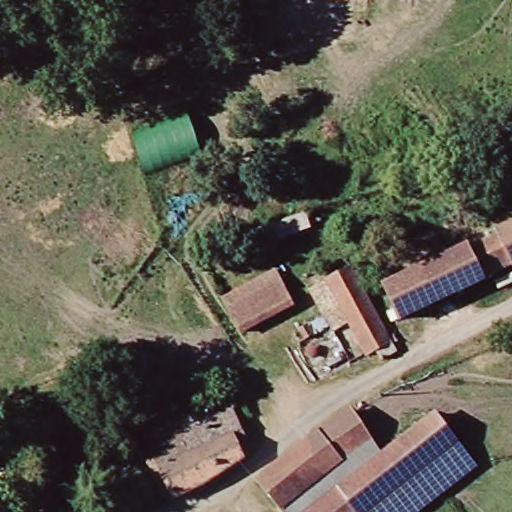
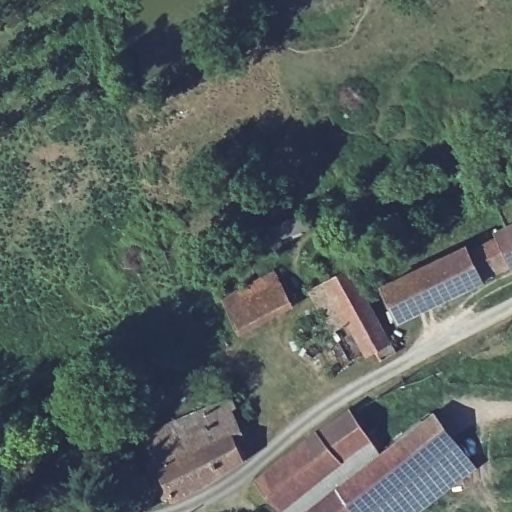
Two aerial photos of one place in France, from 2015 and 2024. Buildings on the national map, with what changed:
demolished [(189,115),(202,151),(143,173),(131,136),(189,115)]
unchanged [(508,230),(512,228),(512,239),(511,235),(508,230)]
unchanged [(486,278),(474,251),(511,235),(512,239),(512,266),(486,278)]
unchanged [(488,282),(407,322),(391,286),(472,247),(474,251),(486,278),(488,282)]
unchanged [(340,327),(319,289),(354,268),(394,342),(372,353),(352,320),(340,327)]
unchanged [(231,298),(275,273),(287,298),(243,322),(231,298)]
unchanged [(152,437),(234,400),(246,428),(235,433),(247,453),(180,498),(177,495),(152,437)]
unchanged [(350,407),(383,450),(305,512),(285,512),(258,478),(326,425),(350,407)]
unchanged [(432,412),(474,463),(412,512),(370,512),(427,466),(402,436),(432,412)]
unchanged [(427,466),(370,512),(305,512),(383,450),(402,436),(427,466)]

